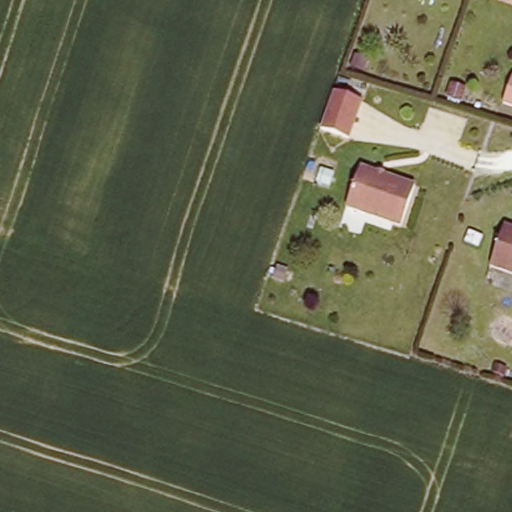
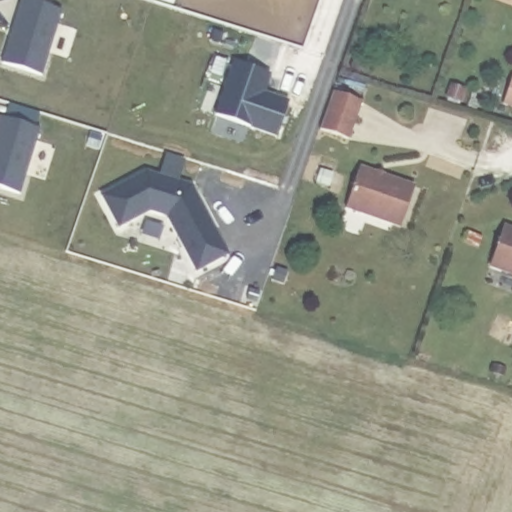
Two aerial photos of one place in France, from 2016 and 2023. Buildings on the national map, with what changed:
new [(22,0),(26,0),(62,11),(43,75),(3,62),(22,0)]
new [(215,114),(234,61),(270,72),(265,92),(289,100),(277,136),(215,114)]
unchanged [(332,91),(362,100),(349,140),(320,129),(332,91)]
new [(40,130),(20,193),(0,187),(0,118),(40,130)]
new [(167,216),(150,211),(119,228),(102,194),(147,171),(192,185),(228,253),(195,272),(167,216)]
unchanged [(367,173),(421,193),(407,232),(352,212),(367,173)]
unchanged [(512,230),(512,273),(497,268),(512,230)]
new [(251,290),(260,293),(257,303),(247,299),(251,290)]

